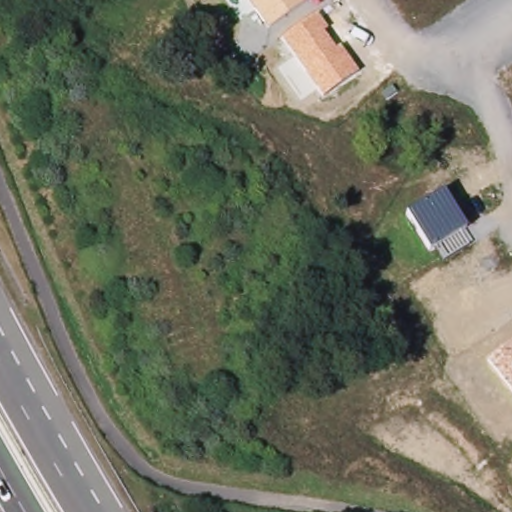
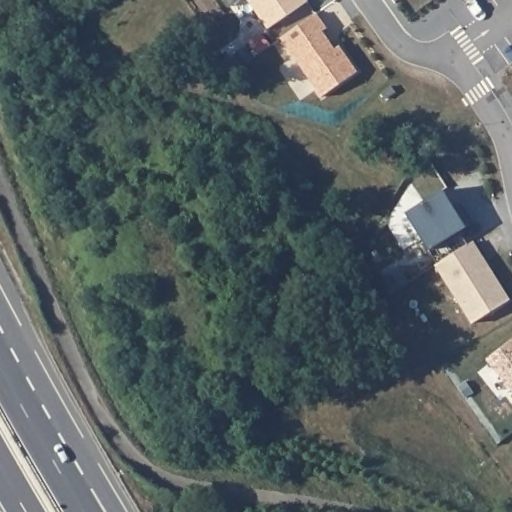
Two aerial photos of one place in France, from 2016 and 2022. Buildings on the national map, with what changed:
unchanged [(307,0),(307,1),(270,29),(248,0),(307,0)]
unchanged [(281,37),(318,13),(329,29),(325,32),(336,49),(341,46),(358,72),(323,99),(281,37)]
unchanged [(406,213),(443,190),(466,229),(462,231),(470,246),(442,262),(434,247),(427,252),(406,213)]
new [(475,243),(511,300),(472,325),(436,266),(442,262),(470,246),(475,243)]
unchanged [(488,359),(512,342),(512,390),(488,359)]

